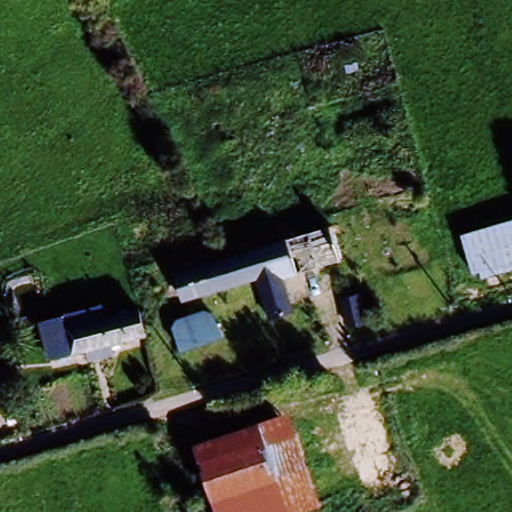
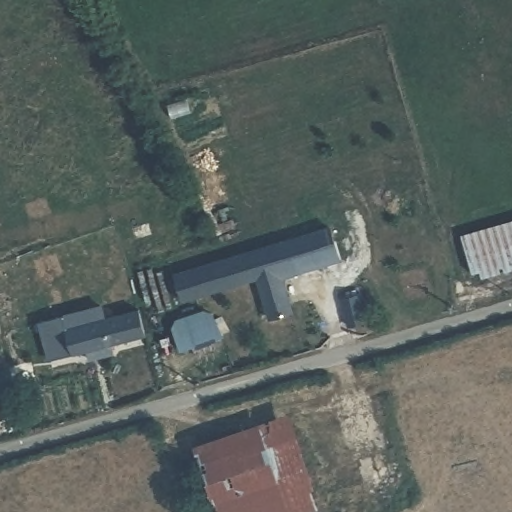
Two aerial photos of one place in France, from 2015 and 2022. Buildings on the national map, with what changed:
unchanged [(330,220),(339,260),(309,269),(311,274),(285,282),(294,313),(268,322),(254,279),(178,302),(170,273),(330,220)]
unchanged [(451,238),(512,222),(512,272),(466,284),(451,238)]
unchanged [(173,357),(163,327),(201,314),(218,339),(173,357)]
unchanged [(53,330),(92,319),(95,329),(126,319),(133,343),(63,364),(45,371),(37,334),(53,330)]
unchanged [(282,417),(315,511),(311,512),(206,512),(186,449),(282,417)]

